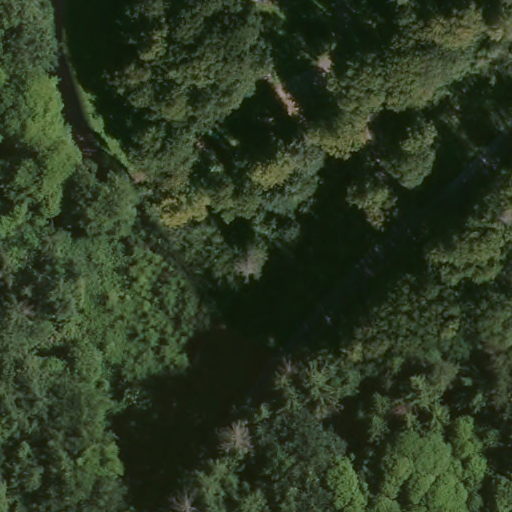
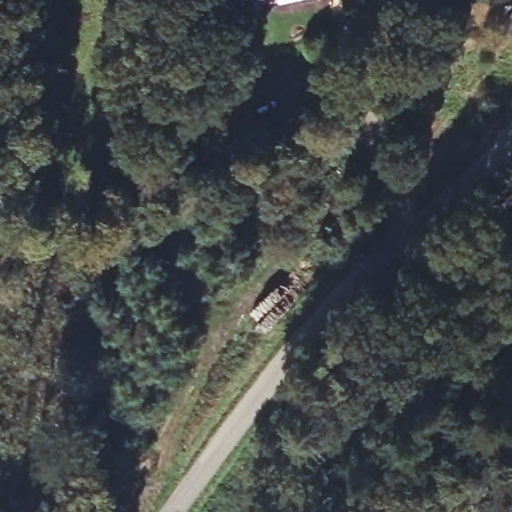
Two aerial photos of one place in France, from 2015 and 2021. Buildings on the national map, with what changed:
unchanged [(506,26),(512,18),(512,30),(506,26)]
unchanged [(428,293),(427,314),(405,315),(406,292),(428,293)]

